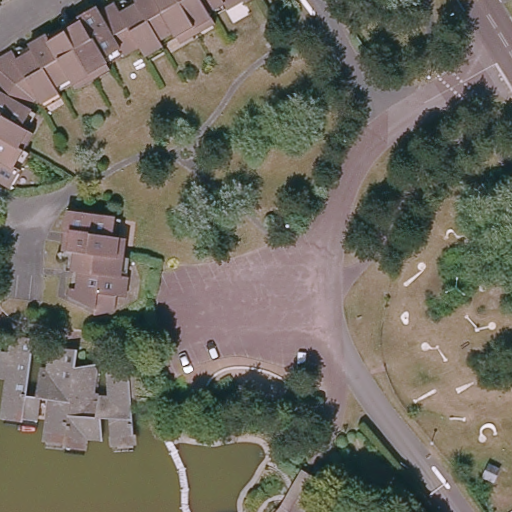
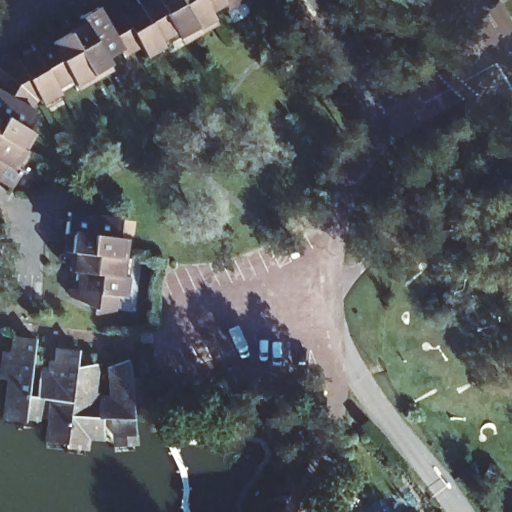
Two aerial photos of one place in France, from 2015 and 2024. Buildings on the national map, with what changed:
unchanged [(13,47),(13,48),(13,49),(13,50),(14,51),(15,52),(15,53),(16,53),(16,54),(17,54),(18,56),(32,49),(29,43),(46,33),(50,39),(80,20),(77,16),(96,5),(100,10),(105,6),(115,1),(120,11),(137,1),(137,0),(220,0),(206,8),(210,14),(178,33),(175,28),(158,38),(161,43),(145,52),(139,41),(122,51),(120,46),(105,55),(108,60),(74,80),(70,74),(55,83),(60,88),(41,99),(38,94),(33,96),(28,105),(32,106),(22,125),(28,128),(19,143),(25,146),(15,163),(21,165),(10,183),(0,177),(0,55),(13,46),(13,47)]
unchanged [(221,0),(234,0),(225,6),(221,0)]
unchanged [(243,0),(244,0),(243,1),(243,0)]
unchanged [(115,214),(113,235),(119,235),(117,253),(123,253),(121,272),(127,273),(126,294),(115,293),(115,307),(93,311),(94,306),(70,293),(70,286),(79,286),(80,268),(74,268),(75,249),(69,248),(70,230),(64,229),(66,209),(115,214)]
unchanged [(5,366),(10,365),(12,339),(33,342),(27,399),(36,400),(38,373),(54,375),(56,351),(76,353),(75,370),(93,366),(95,372),(91,404),(95,405),(98,405),(98,399),(108,400),(108,368),(126,360),(130,369),(130,390),(134,391),(137,391),(137,406),(133,406),(133,438),(114,438),(114,420),(103,421),(103,438),(103,440),(86,440),(86,442),(65,440),(65,435),(46,434),(49,408),(49,402),(38,400),(38,408),(36,419),(20,418),(20,413),(5,412),(8,380),(1,379),(2,366),(5,366)]
unchanged [(277,509),(295,482),(300,473),(315,482),(309,492),(298,512),(275,512),(277,509)]

